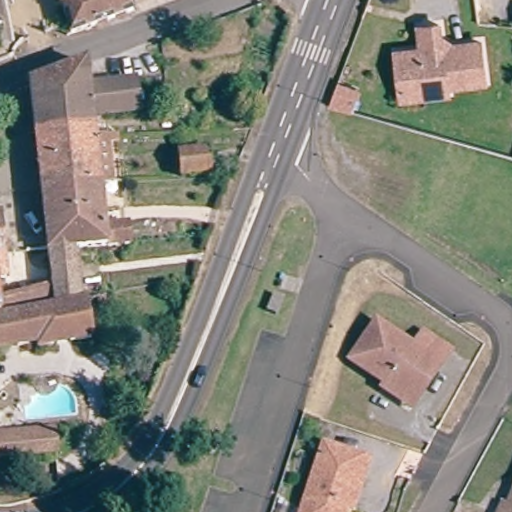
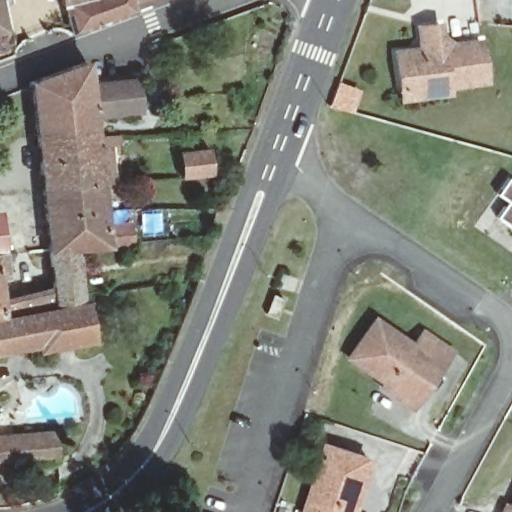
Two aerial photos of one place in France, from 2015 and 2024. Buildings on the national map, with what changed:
unchanged [(140,13),(77,36),(68,0),(137,0),(137,3),(140,13)]
unchanged [(137,0),(148,0),(137,3),(137,0)]
unchanged [(405,85),(399,50),(425,45),(422,23),(441,20),(445,48),(454,46),(453,41),(483,36),(489,75),(452,81),(453,88),(432,91),(406,95),(405,85)]
unchanged [(111,141),(102,141),(107,179),(48,184),(43,129),(38,84),(37,78),(94,59),(97,82),(99,114),(100,123),(101,133),(112,133),(111,141)]
unchanged [(142,79),(144,111),(99,114),(97,82),(142,79)]
unchanged [(256,126),(255,129),(253,136),(242,133),(243,130),(245,122),(256,126)]
unchanged [(206,156),(209,175),(184,179),(180,160),(206,156)]
new [(512,180),(512,228),(497,217),(507,203),(496,195),(508,177),(512,180)]
unchanged [(54,252),(54,249),(48,186),(48,184),(107,179),(111,223),(123,222),(124,233),(139,232),(140,241),(82,249),(54,252)]
unchanged [(8,240),(10,252),(11,275),(2,278),(6,300),(59,290),(54,252),(82,249),(84,299),(0,314),(0,211),(5,211),(8,240)]
unchanged [(95,337),(42,345),(42,343),(0,352),(0,318),(89,304),(95,337)]
unchanged [(390,394),(395,385),(360,361),(386,323),(423,348),(432,334),(461,354),(451,368),(420,414),(390,394)]
unchanged [(59,456),(0,461),(0,438),(57,433),(59,456)]
unchanged [(374,459),(370,472),(358,509),(352,507),(351,512),(306,512),(327,444),(374,459)]
unchanged [(512,509),(512,512),(507,512),(509,508),(512,509)]

